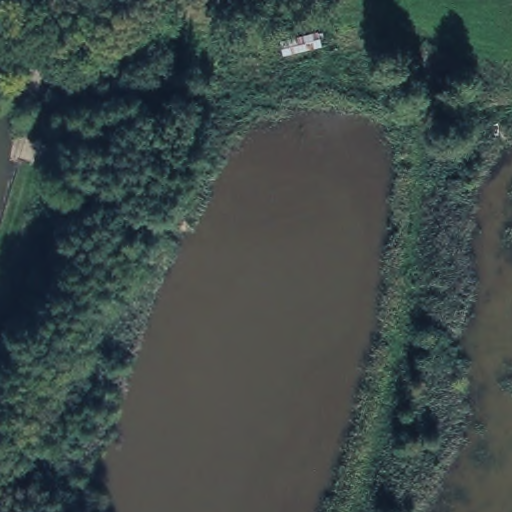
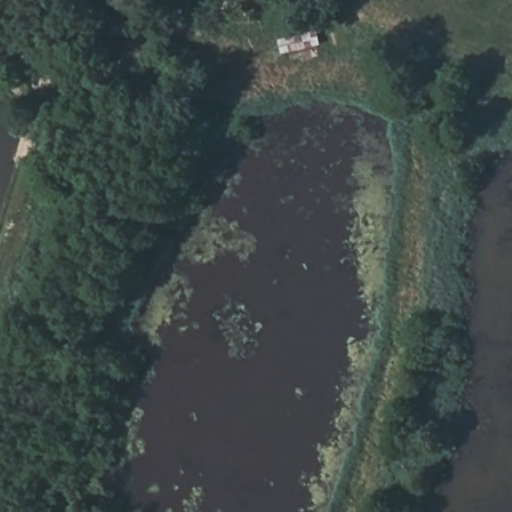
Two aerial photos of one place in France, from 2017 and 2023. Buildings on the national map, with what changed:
unchanged [(315,22),(321,43),(289,49),(293,64),(243,76),(237,41),(315,22)]

